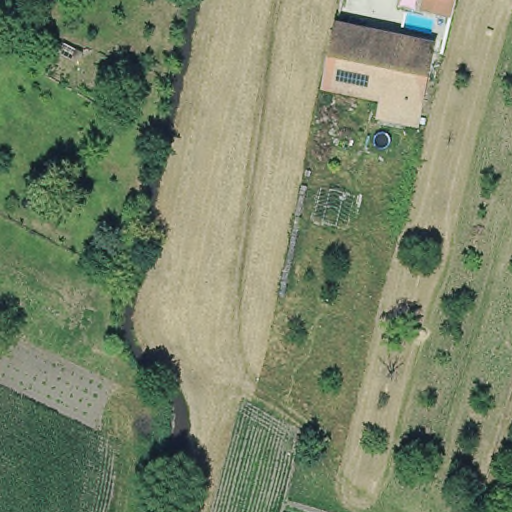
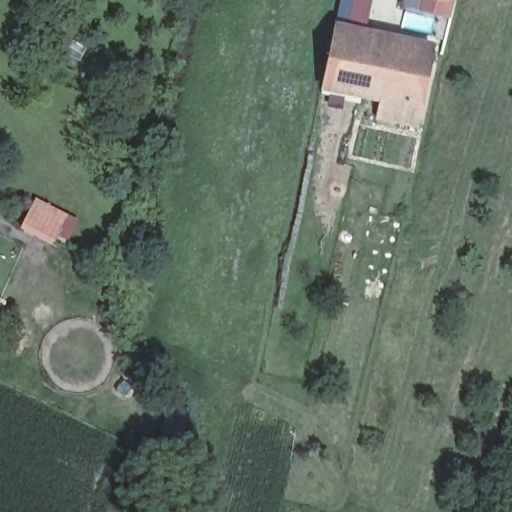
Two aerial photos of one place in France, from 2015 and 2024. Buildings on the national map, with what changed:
unchanged [(447,0),(450,0),(455,1),(451,20),(425,14),(428,0),(442,0),(447,1),(447,0)]
unchanged [(365,41),(434,55),(422,110),(324,90),(335,35),(347,38),(365,41)]
new [(39,196),(80,221),(69,240),(60,235),(54,245),(22,225),(24,221),(39,196)]

